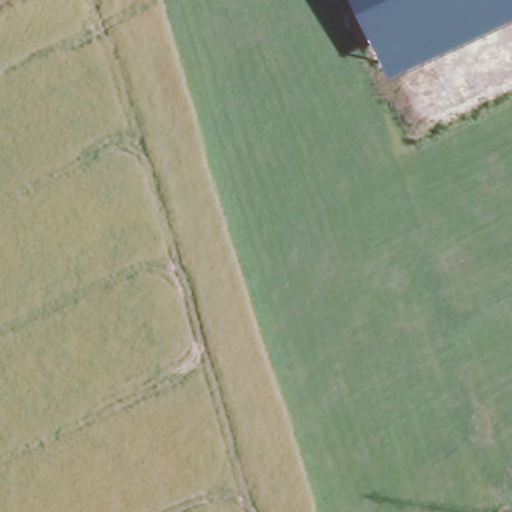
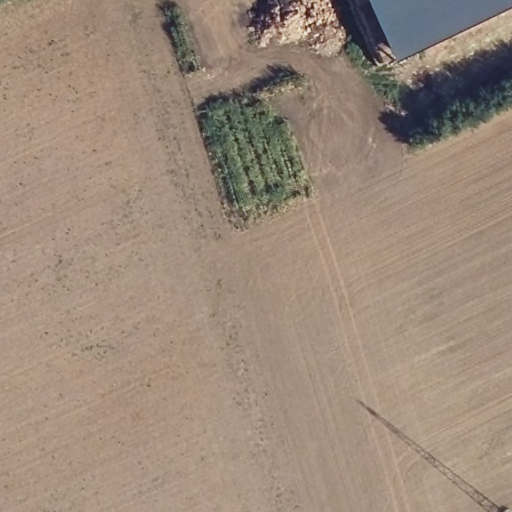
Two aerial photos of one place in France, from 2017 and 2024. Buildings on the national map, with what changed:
unchanged [(361,0),(512,0),(512,7),(390,64),(361,0)]

